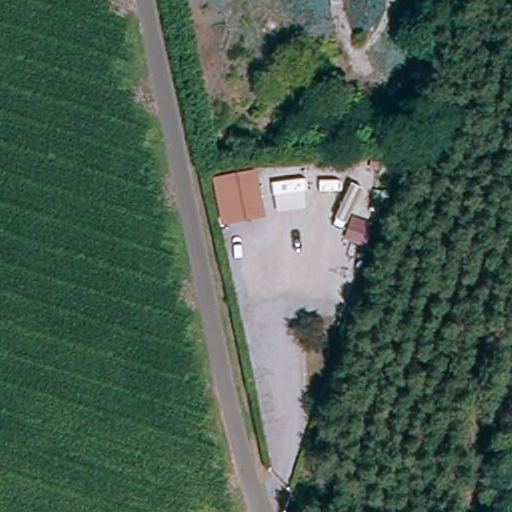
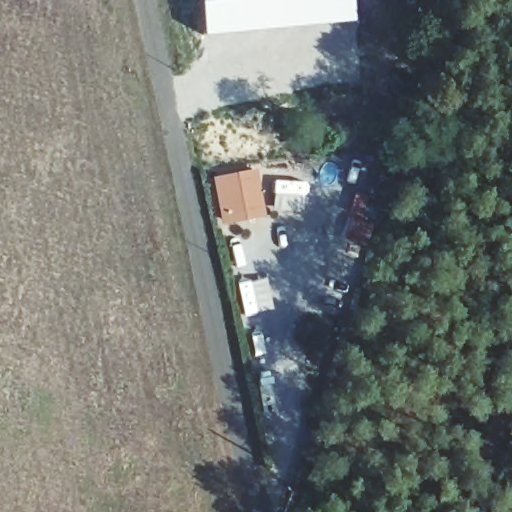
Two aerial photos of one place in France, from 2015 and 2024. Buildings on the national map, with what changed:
new [(202,36),(199,0),(352,0),(355,22),(202,36)]
unchanged [(214,178),(259,170),(267,215),(222,225),(214,178)]

